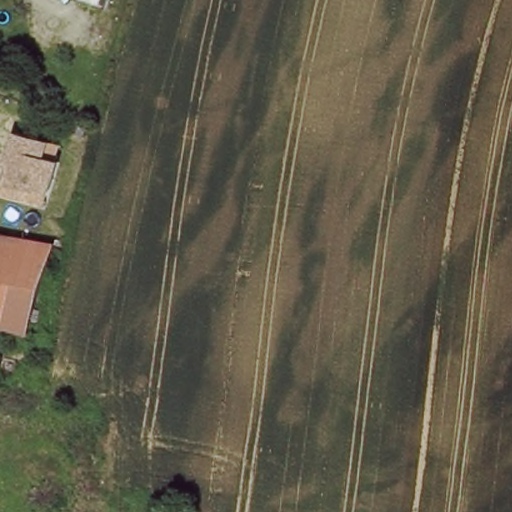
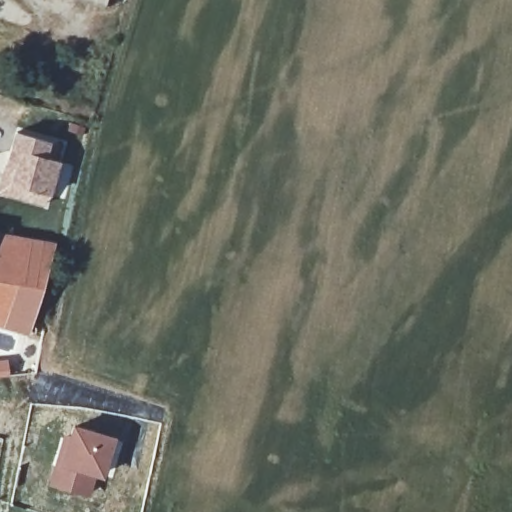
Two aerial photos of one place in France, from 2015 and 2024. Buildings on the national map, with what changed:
unchanged [(27,197),(3,191),(0,190),(0,174),(3,163),(12,130),(53,141),(48,156),(53,158),(44,191),(42,200),(27,197)]
unchanged [(0,321),(0,237),(50,245),(25,327),(0,321)]
new [(53,463),(60,465),(72,425),(115,438),(103,480),(95,477),(89,498),(48,486),(53,463)]

